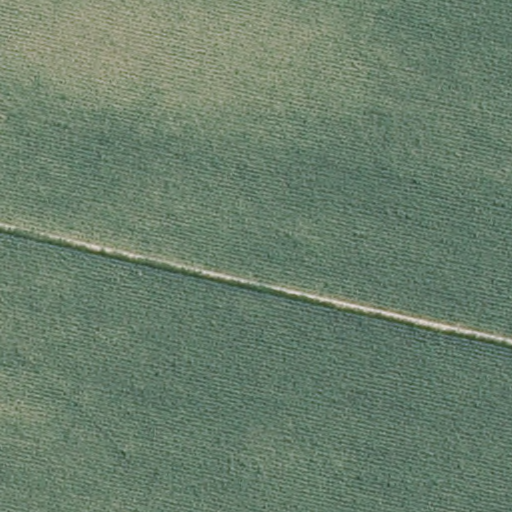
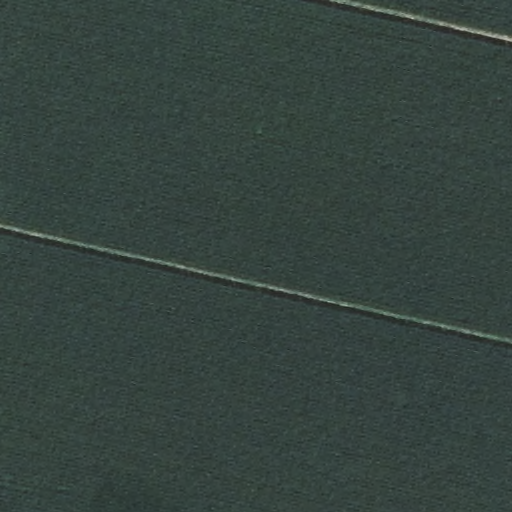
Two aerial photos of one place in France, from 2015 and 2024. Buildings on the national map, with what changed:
[]

